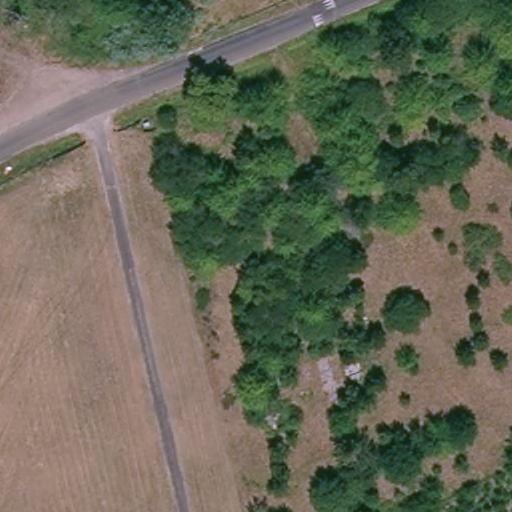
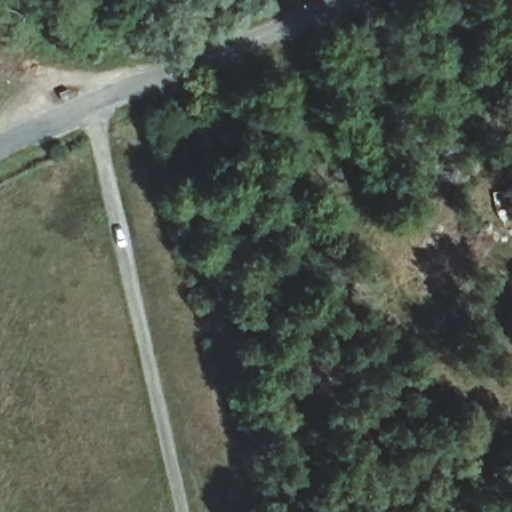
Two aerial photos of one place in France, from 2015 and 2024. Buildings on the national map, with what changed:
[]

